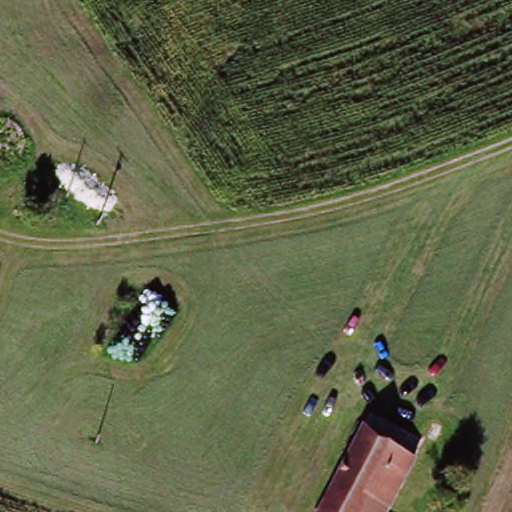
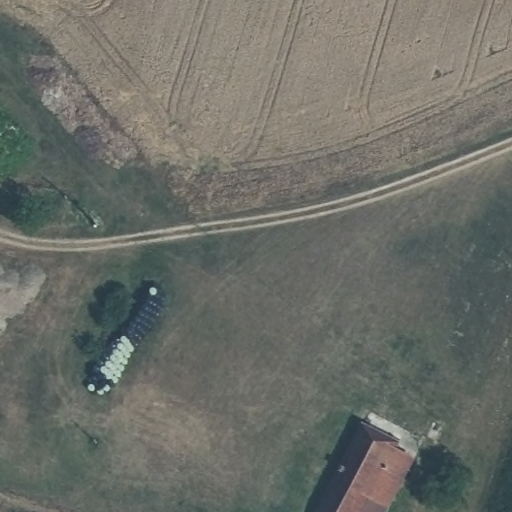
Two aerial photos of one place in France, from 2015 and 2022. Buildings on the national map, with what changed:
unchanged [(363,431),(416,461),(389,512),(317,512),(363,431)]

